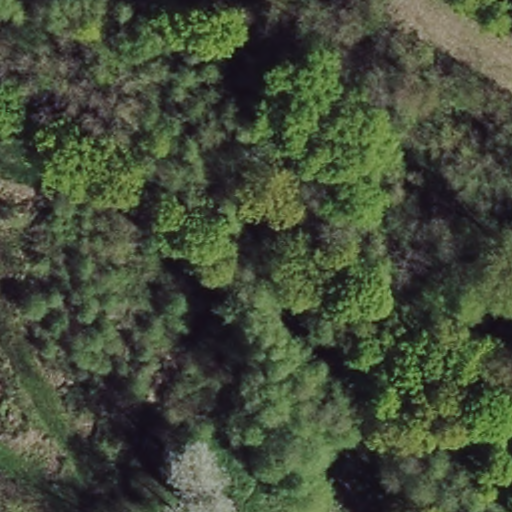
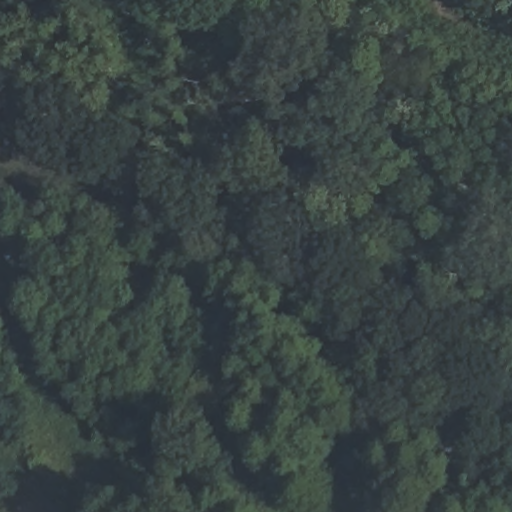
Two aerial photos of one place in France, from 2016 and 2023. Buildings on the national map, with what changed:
[]

